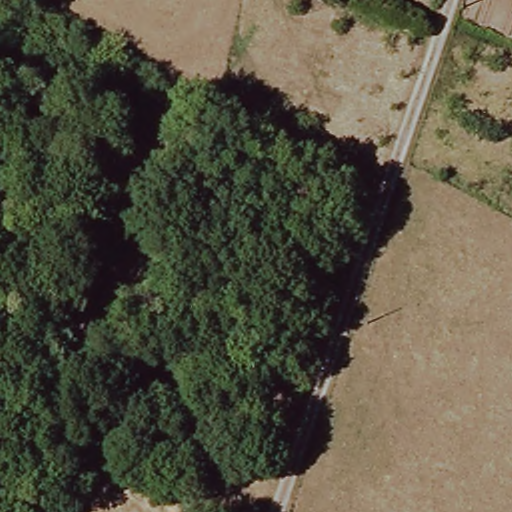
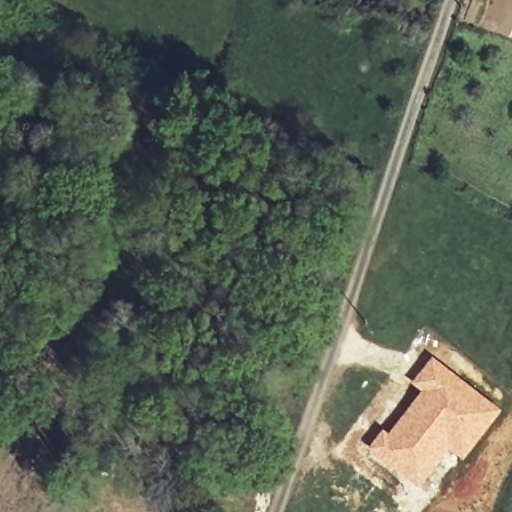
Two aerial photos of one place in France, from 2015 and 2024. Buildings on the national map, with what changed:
new [(382,429),(388,433),(419,392),(410,384),(433,356),(501,410),(462,460),(450,451),(420,490),(366,449),(382,429)]

